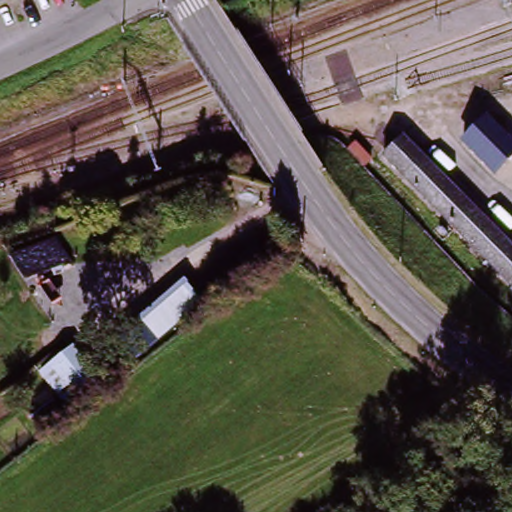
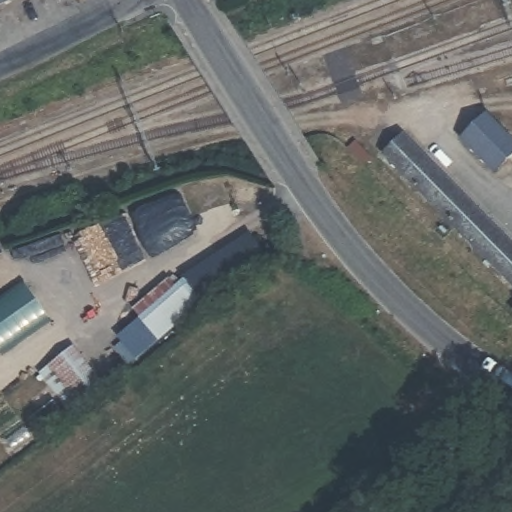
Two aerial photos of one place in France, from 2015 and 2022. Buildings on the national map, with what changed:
unchanged [(2,0),(0,1),(0,0),(2,0)]
unchanged [(512,140),(512,157),(495,174),(462,136),(485,114),(512,140)]
unchanged [(379,156),(404,134),(512,245),(512,292),(379,156)]
unchanged [(263,268),(133,371),(113,349),(254,236),(263,268)]
new [(51,317),(0,351),(0,299),(24,283),(51,317)]
unchanged [(512,307),(512,314),(509,311),(512,307)]
unchanged [(67,412),(65,413),(37,376),(73,351),(100,388),(67,412)]
unchanged [(25,424),(50,407),(60,422),(36,439),(25,424)]

